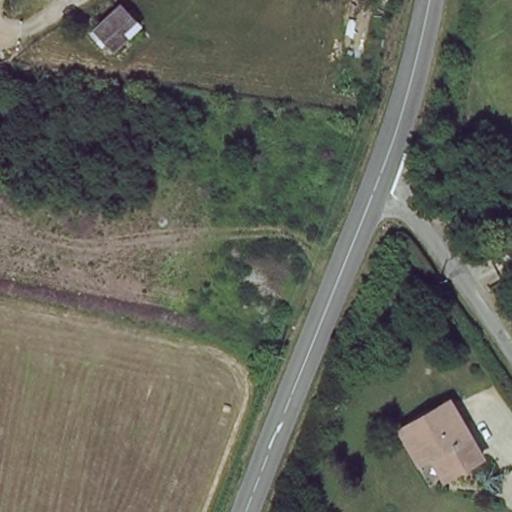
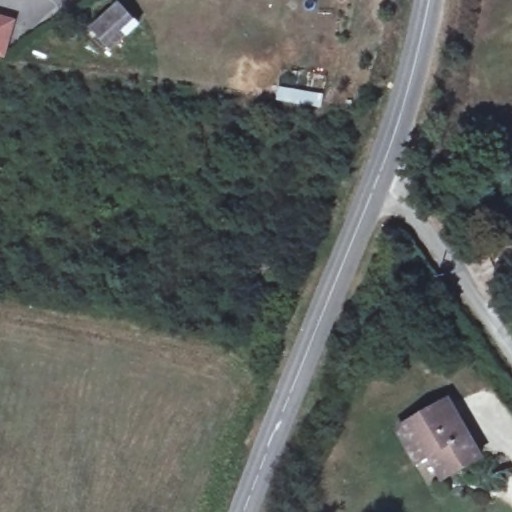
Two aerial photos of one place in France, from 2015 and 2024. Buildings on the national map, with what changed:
unchanged [(140,26),(113,52),(92,30),(118,4),(140,26)]
new [(0,55),(0,15),(17,20),(7,57),(0,55)]
unchanged [(482,460),(443,481),(430,458),(412,468),(392,432),(445,401),(482,460)]

